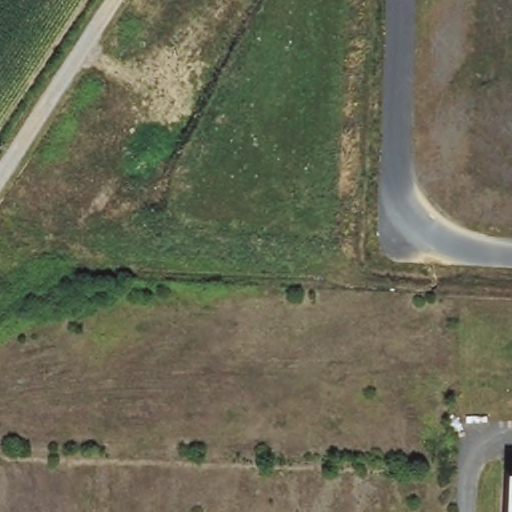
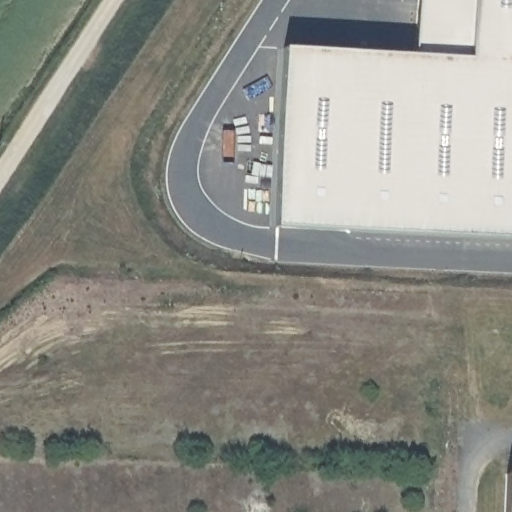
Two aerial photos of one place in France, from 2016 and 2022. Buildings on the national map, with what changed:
new [(286,47),(416,53),(419,0),(512,0),(512,236),(278,225),(286,47)]
unchanged [(512,473),(512,512),(506,512),(507,473),(512,473)]

